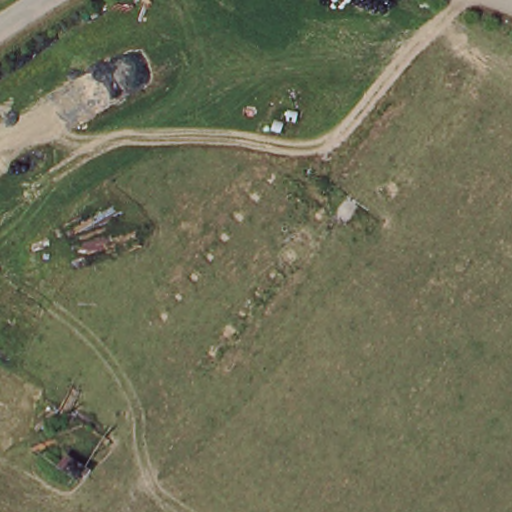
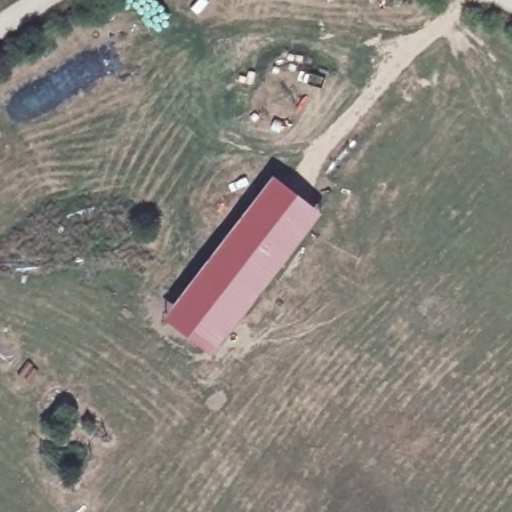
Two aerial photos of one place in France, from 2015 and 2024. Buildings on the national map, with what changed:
new [(215,353),(167,316),(275,178),(322,215),(215,353)]
demolished [(90,450),(76,475),(53,464),(55,460),(46,460),(46,449),(65,448),(70,439),(90,450)]

